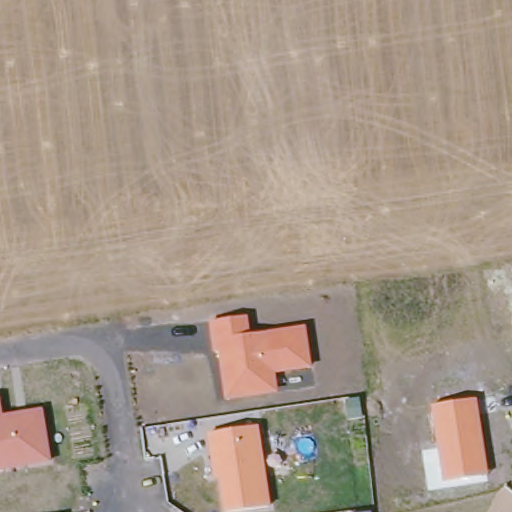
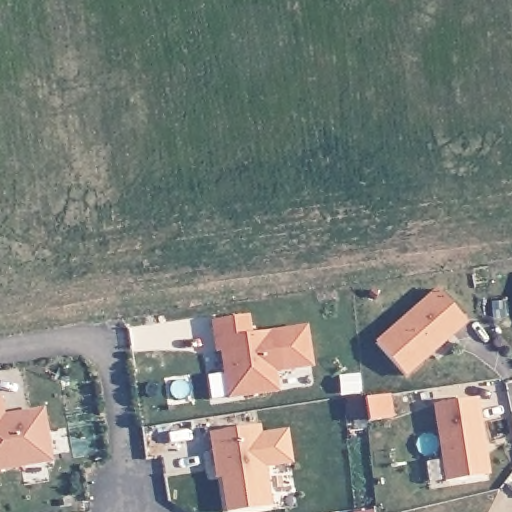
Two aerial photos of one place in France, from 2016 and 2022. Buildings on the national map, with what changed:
new [(406,376),(376,342),(436,288),(467,323),(406,376)]
unchanged [(312,368),(276,373),(278,393),(225,399),(218,351),(213,351),(209,321),(248,316),(250,332),(306,324),(312,368)]
unchanged [(488,474),(442,481),(430,404),(476,397),(488,474)]
unchanged [(0,471),(0,399),(2,413),(42,407),(51,462),(0,471)]
unchanged [(270,506),(224,511),(220,478),(214,478),(208,432),(259,424),(270,506)]

